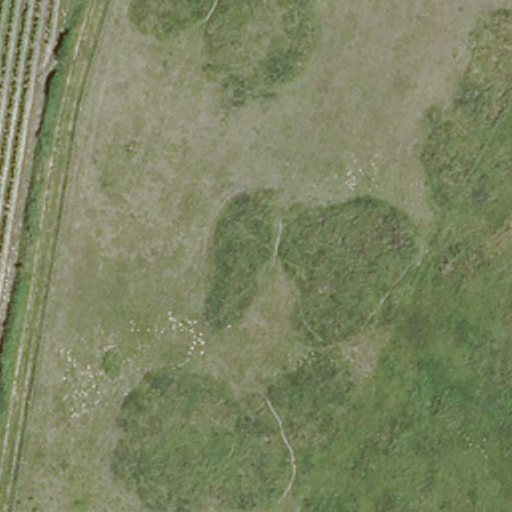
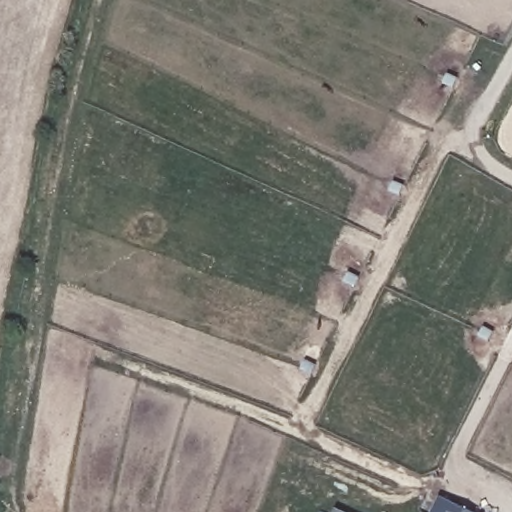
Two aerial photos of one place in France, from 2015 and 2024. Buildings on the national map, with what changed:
new [(438,495),(473,512),(430,512),(438,495)]

